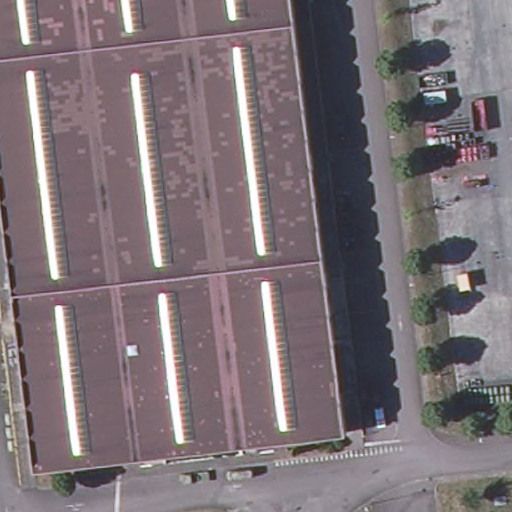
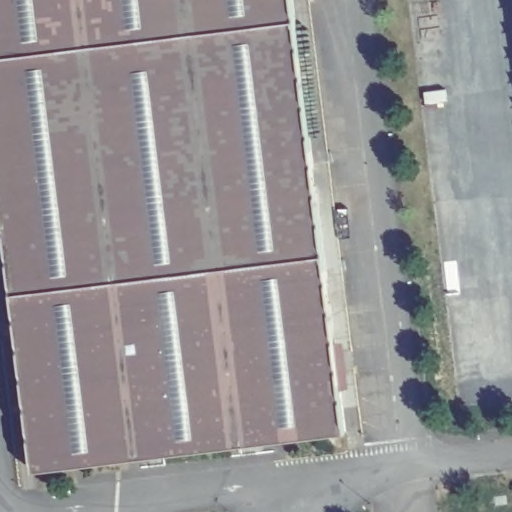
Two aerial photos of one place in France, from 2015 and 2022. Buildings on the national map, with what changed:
unchanged [(343,435),(31,473),(0,219),(0,0),(289,0),(343,435)]

